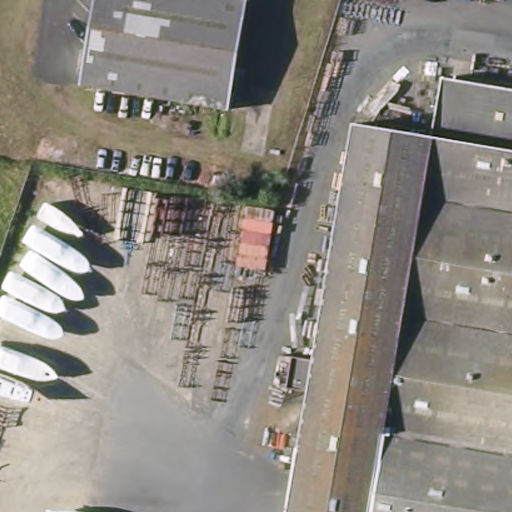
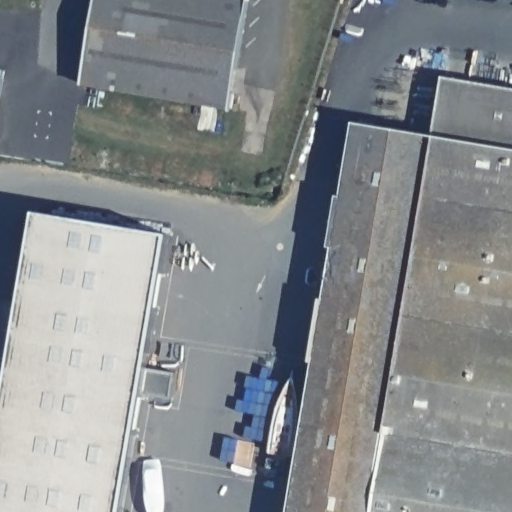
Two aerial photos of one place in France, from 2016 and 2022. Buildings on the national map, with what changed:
unchanged [(82,84),(96,0),(247,0),(229,109),(82,84)]
unchanged [(313,392),(292,388),(298,356),(319,359),(359,124),(437,136),(447,77),(512,88),(512,512),(292,512),(313,392)]
new [(37,212),(169,234),(122,512),(0,512),(0,432),(37,212)]

